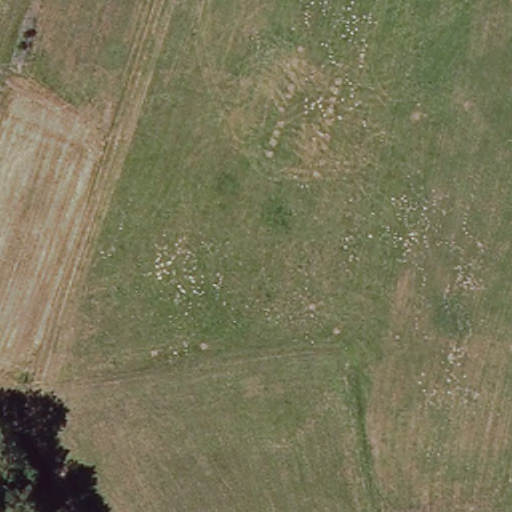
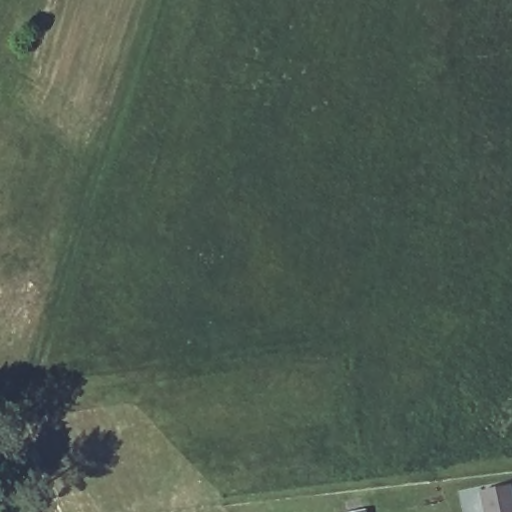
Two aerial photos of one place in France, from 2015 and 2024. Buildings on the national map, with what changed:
new [(508,487),(512,508),(512,512),(483,512),(479,494),(508,487)]

